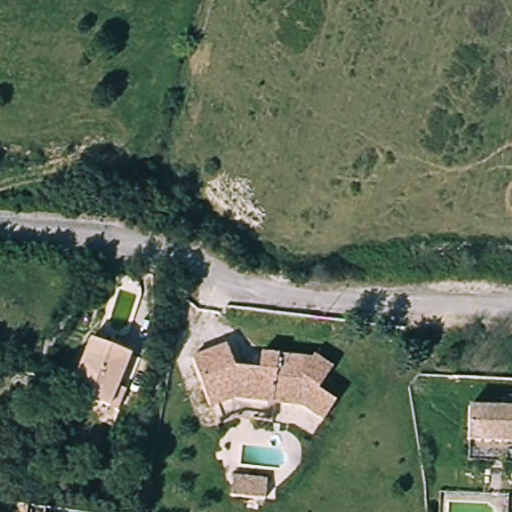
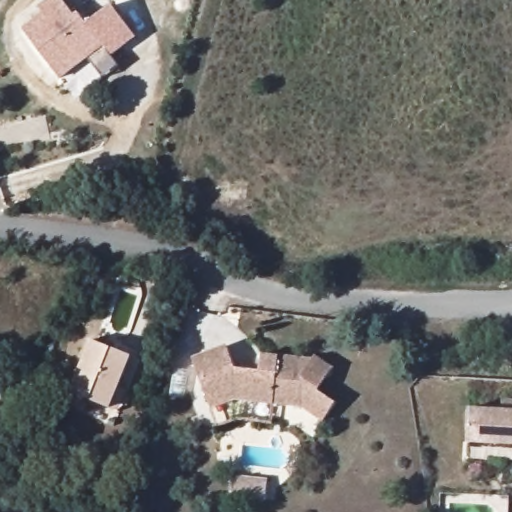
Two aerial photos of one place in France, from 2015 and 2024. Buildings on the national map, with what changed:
new [(111,56),(104,47),(60,80),(23,30),(44,14),(39,7),(48,0),(63,0),(75,15),(78,12),(87,24),(112,5),(136,39),(111,56)]
new [(89,60),(105,47),(120,68),(105,80),(89,60)]
unchanged [(115,406),(107,403),(68,386),(87,340),(126,356),(115,381),(124,385),(115,406)]
unchanged [(313,390),(332,400),(321,420),(298,405),(234,404),(207,412),(190,360),(225,350),(233,372),(256,372),(256,357),(307,358),(308,355),(326,367),(313,390)]
unchanged [(466,413),(500,414),(500,404),(512,404),(512,447),(466,447),(466,413)]
unchanged [(227,496),(228,483),(228,476),(262,478),(261,483),(261,497),(227,496)]

